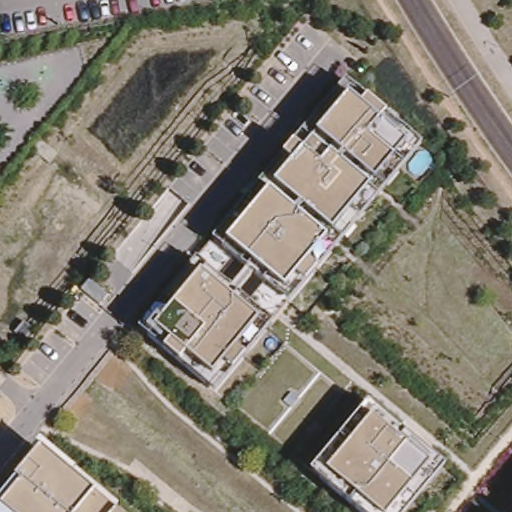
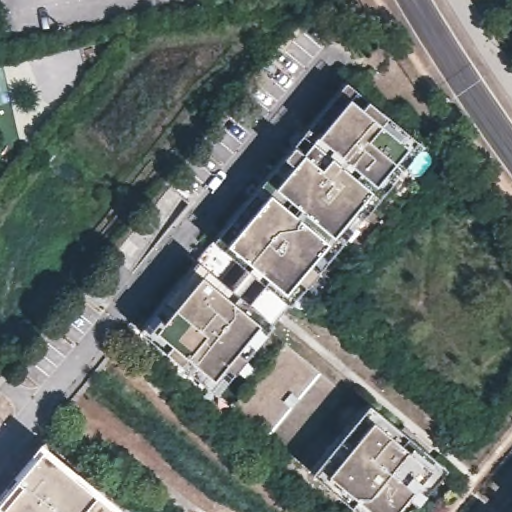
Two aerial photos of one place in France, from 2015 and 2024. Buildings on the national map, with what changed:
unchanged [(140,330),(195,262),(227,289),(242,269),(212,245),(342,81),(419,147),(288,303),(210,390),(140,330)]
unchanged [(356,512),(310,473),(362,407),(437,466),(399,512),(356,512)]
unchanged [(12,476),(40,445),(114,512),(0,512),(0,497),(15,480),(12,476)]

